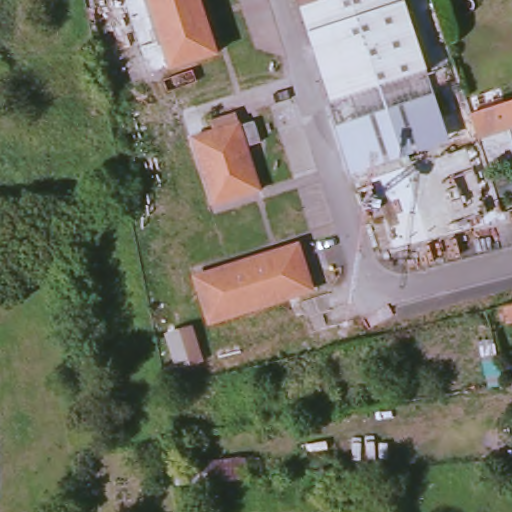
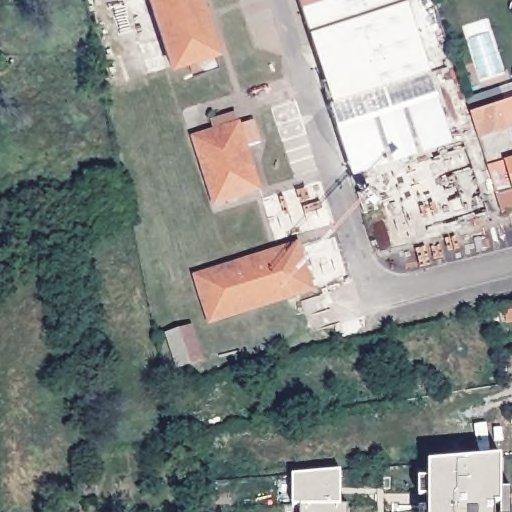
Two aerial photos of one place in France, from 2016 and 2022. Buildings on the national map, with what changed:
demolished [(0,38),(0,0),(10,0),(8,38),(0,38)]
unchanged [(169,63),(148,0),(197,0),(214,49),(169,63)]
unchanged [(339,95),(326,54),(319,56),(301,0),(405,0),(430,74),(348,100),(339,95)]
unchanged [(452,141),(353,173),(331,106),(334,105),(319,56),(326,54),(339,95),(348,100),(430,74),(452,141)]
unchanged [(473,115),(498,105),(512,99),(512,161),(490,167),(473,115)]
unchanged [(264,198),(218,212),(196,145),(222,137),(218,125),(241,118),(245,130),(258,126),(265,148),(251,153),(264,198)]
unchanged [(214,323),(200,279),(302,246),(316,290),(214,323)]
unchanged [(502,307),(512,305),(512,319),(506,320),(502,307)]
unchanged [(184,329),(193,368),(169,372),(158,331),(184,329)]
demolished [(251,455),(255,475),(194,481),(189,458),(251,455)]
new [(429,462),(501,457),(501,512),(429,512),(429,462)]
new [(341,506),(348,506),(348,512),(301,512),(301,506),(292,506),(293,475),(341,471),(341,506)]

